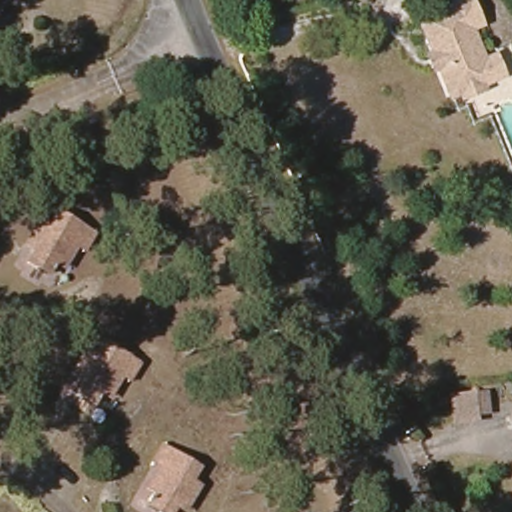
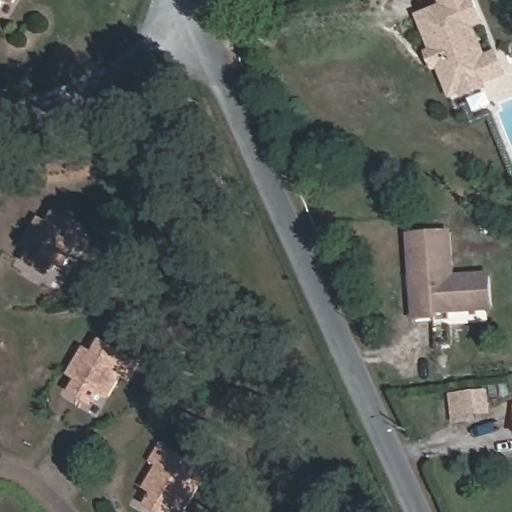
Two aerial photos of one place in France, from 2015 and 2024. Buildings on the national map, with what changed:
unchanged [(0,4),(0,0),(3,0),(0,4)]
unchanged [(13,2),(10,0),(14,0),(13,2)]
unchanged [(481,31),(470,35),(486,89),(474,93),(473,97),(461,102),(456,97),(448,100),(422,20),(427,19),(450,11),(446,0),(470,0),(475,15),(481,31)]
unchanged [(24,246),(41,220),(48,225),(56,215),(84,232),(94,238),(83,257),(73,251),(63,268),(53,261),(46,271),(44,275),(29,265),(33,256),(36,252),(24,246)]
new [(438,315),(438,319),(414,321),(407,233),(453,229),(456,274),(494,272),(495,312),(438,315)]
unchanged [(129,381),(124,391),(115,385),(107,400),(97,394),(90,408),(70,395),(77,384),(66,375),(80,352),(91,360),(100,346),(101,345),(128,363),(136,368),(129,381)]
unchanged [(455,422),(452,398),(482,395),(484,411),(478,412),(478,418),(455,422)]
unchanged [(164,512),(156,512),(142,503),(150,490),(141,484),(154,462),(163,468),(171,455),(198,472),(207,478),(196,496),(187,491),(178,507),(170,502),(164,512)]

